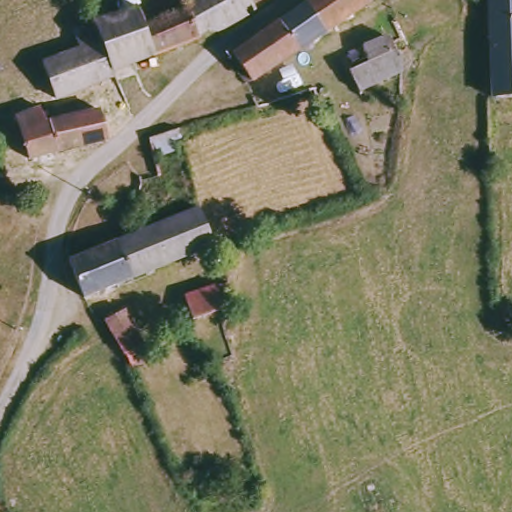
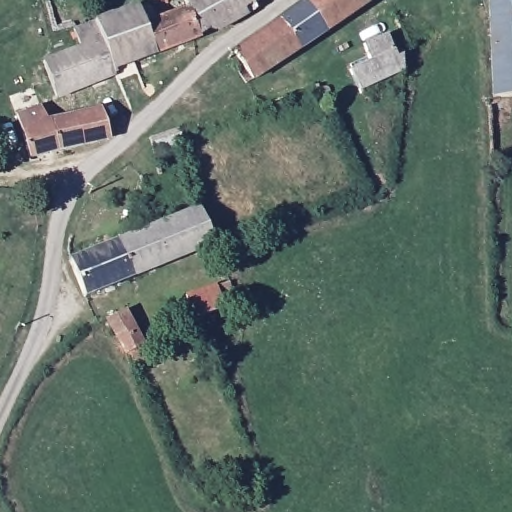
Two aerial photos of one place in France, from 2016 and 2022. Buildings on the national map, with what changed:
unchanged [(196,6),(194,0),(273,0),(266,5),(250,15),(209,33),(196,6)]
unchanged [(238,52),(320,0),(381,0),(383,2),(255,83),(238,52)]
unchanged [(498,106),(494,3),(494,0),(512,0),(512,105),(498,106)]
unchanged [(189,41),(120,66),(104,18),(144,5),(151,21),(196,6),(209,33),(189,41)]
unchanged [(120,70),(64,97),(52,61),(83,47),(78,26),(104,18),(120,66),(120,70)]
unchanged [(382,87),(371,69),(369,63),(387,54),(381,41),(406,31),(411,42),(424,36),(430,48),(416,55),(418,68),(382,87)]
unchanged [(51,124),(105,113),(111,139),(36,159),(28,129),(25,119),(43,111),(51,124)]
unchanged [(78,259),(206,208),(220,244),(88,296),(78,259)]
unchanged [(186,289),(220,277),(226,302),(196,314),(186,289)]
unchanged [(129,302),(146,337),(153,352),(133,361),(109,311),(129,302)]

